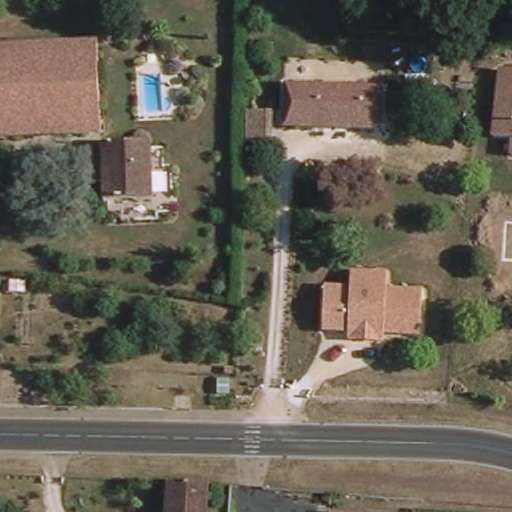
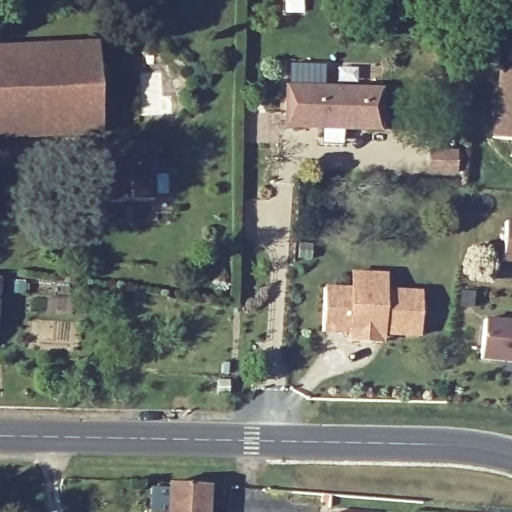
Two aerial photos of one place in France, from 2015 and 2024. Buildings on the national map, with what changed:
unchanged [(100,134),(0,137),(0,47),(97,44),(100,134)]
unchanged [(512,73),(512,156),(509,156),(509,143),(492,141),(500,72),(512,73)]
unchanged [(385,85),(384,132),(285,131),(286,81),(385,85)]
unchanged [(265,116),(265,142),(247,142),(247,116),(265,116)]
unchanged [(155,202),(105,202),(104,147),(153,146),(155,202)]
unchanged [(512,222),(512,264),(502,263),(505,222),(512,222)]
unchanged [(324,285),(350,286),(351,271),(388,273),(387,287),(421,289),(418,337),(385,336),(385,342),(346,341),(346,333),(321,332),(324,285)]
new [(512,320),(512,365),(480,362),(483,317),(512,320)]
unchanged [(201,412),(199,434),(191,433),(194,412),(201,412)]
unchanged [(209,491),(207,512),(169,512),(170,487),(209,491)]

